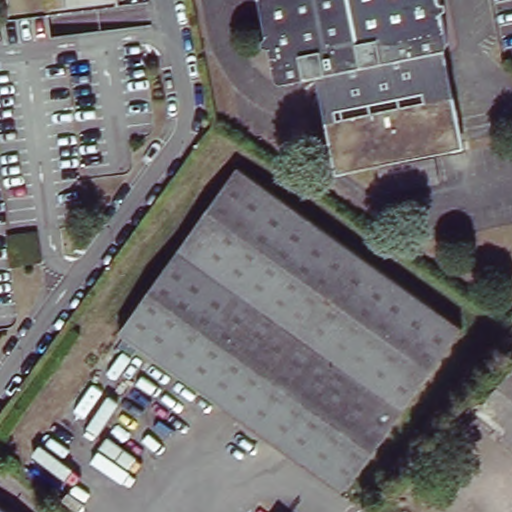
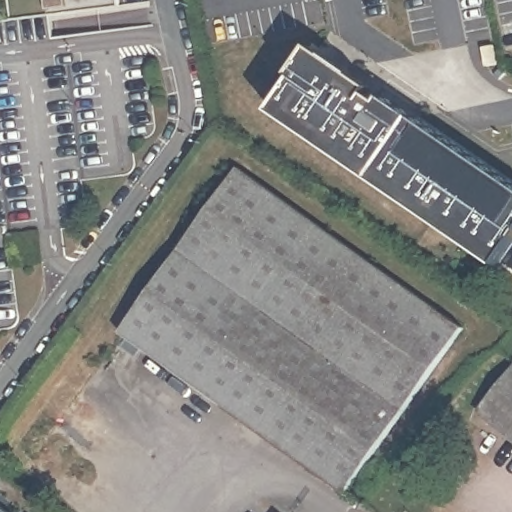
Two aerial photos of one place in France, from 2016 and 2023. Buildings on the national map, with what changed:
unchanged [(119,5),(11,20),(8,0),(118,0),(119,5)]
demolished [(323,72),(282,81),(277,78),(261,0),(441,0),(449,41),(445,47),(440,48),(458,141),(342,165),(323,72)]
new [(294,76),(288,71),(308,45),(372,87),(365,96),(387,112),(393,101),(512,180),(512,270),(502,263),(498,267),(269,110),(294,76)]
new [(496,45),(498,66),(484,68),(481,48),(496,45)]
unchanged [(238,167),(462,326),(344,493),(221,404),(120,332),(238,167)]
unchanged [(483,411),(487,406),(512,375),(512,435),(483,411)]
unchanged [(0,512),(0,506),(8,512),(0,512)]

